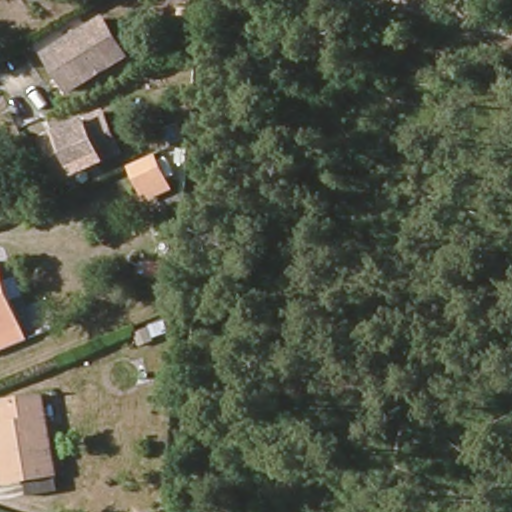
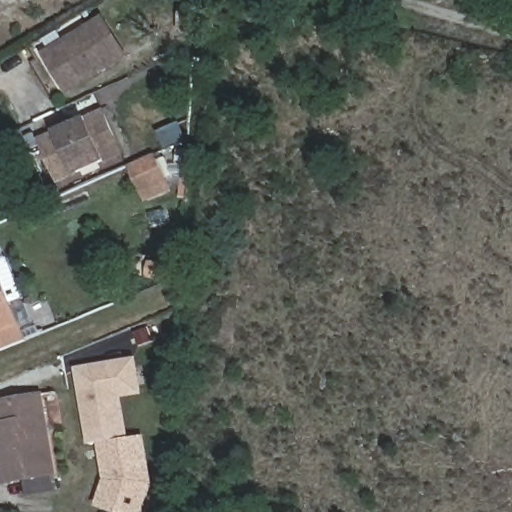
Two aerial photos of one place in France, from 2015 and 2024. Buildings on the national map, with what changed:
unchanged [(194,30),(185,30),(185,18),(194,18),(194,30)]
unchanged [(126,57),(68,93),(45,54),(102,19),(126,57)]
unchanged [(59,181),(40,140),(103,112),(121,154),(59,181)]
unchanged [(184,139),(166,146),(160,133),(178,125),(184,139)]
unchanged [(170,189),(146,199),(130,165),(154,154),(170,189)]
unchanged [(161,280),(146,278),(149,262),(165,264),(161,280)]
unchanged [(25,341),(24,341),(0,351),(0,277),(25,341)]
unchanged [(167,332),(155,336),(151,327),(164,323),(167,332)]
unchanged [(152,340),(140,344),(136,334),(148,329),(152,340)]
new [(139,358),(145,395),(125,398),(131,438),(97,443),(90,444),(76,368),(139,358)]
unchanged [(32,491),(30,474),(10,478),(0,425),(0,420),(8,419),(4,398),(47,391),(60,469),(63,485),(32,491)]
new [(97,443),(145,435),(154,484),(144,512),(110,512),(94,507),(104,480),(97,443)]

